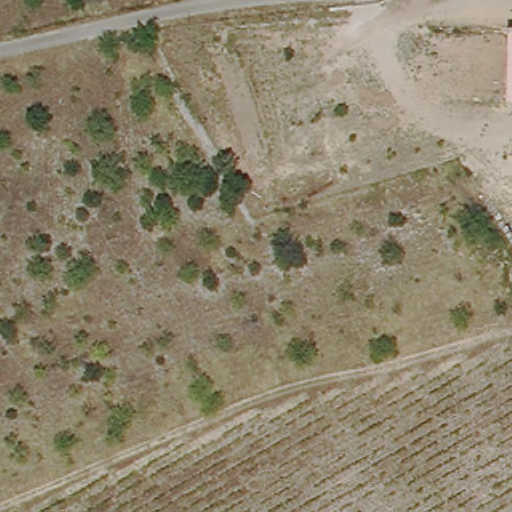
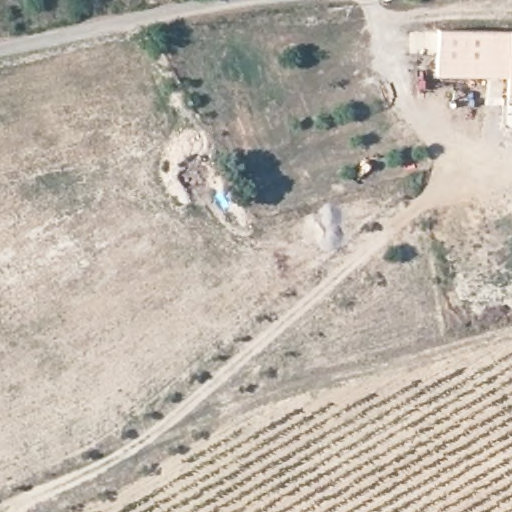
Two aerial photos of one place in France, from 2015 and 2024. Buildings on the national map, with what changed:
new [(508,32),(506,77),(436,76),(436,30),(508,32)]
unchanged [(512,32),(512,103),(505,102),(508,32),(512,32)]

